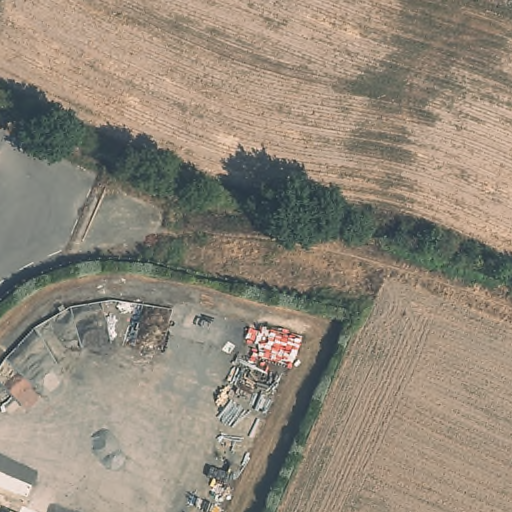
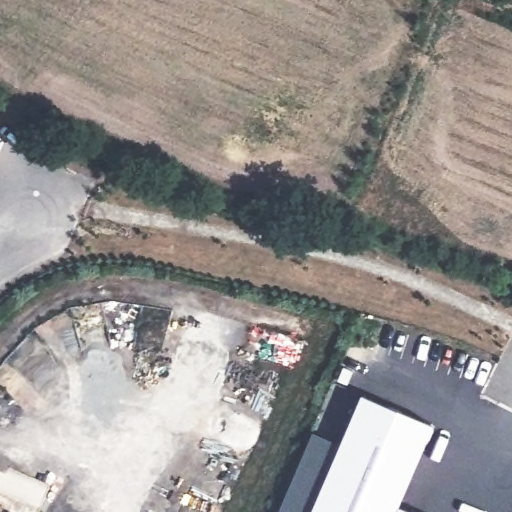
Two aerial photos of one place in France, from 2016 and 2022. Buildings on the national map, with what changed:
new [(432,425),(396,506),(410,512),(308,512),(359,394),(432,425)]

